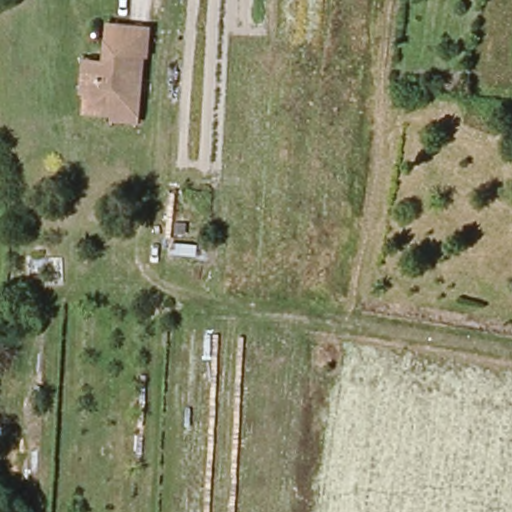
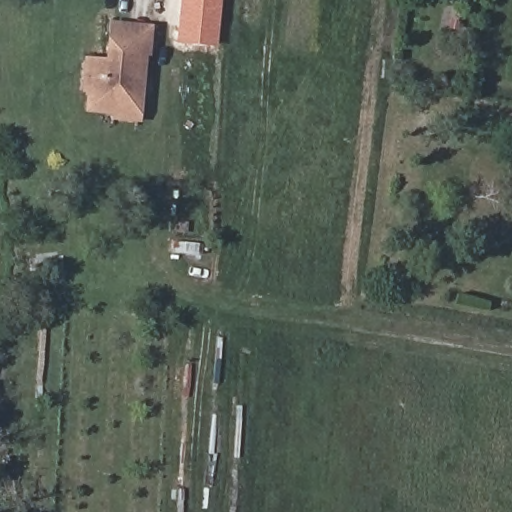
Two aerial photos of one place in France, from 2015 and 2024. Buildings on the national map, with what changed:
new [(217,44),(206,43),(205,48),(174,45),(179,0),(221,0),(217,44)]
unchanged [(120,114),(94,112),(95,97),(87,97),(87,86),(90,64),(109,64),(110,57),(111,41),(112,27),(151,29),(150,55),(146,55),(143,109),(143,121),(120,120),(120,114)]

